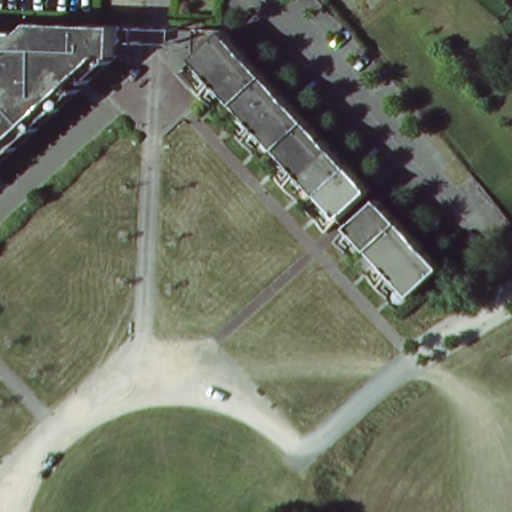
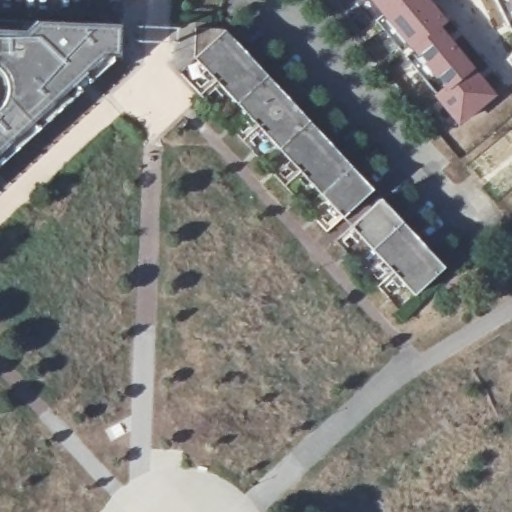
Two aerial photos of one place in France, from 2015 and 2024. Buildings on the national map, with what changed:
new [(449,20),(443,26),(499,94),(459,127),(432,93),(439,86),(425,71),(369,0),(432,0),(449,20)]
new [(504,0),(512,0),(512,14),(504,0)]
unchanged [(3,95),(3,85),(0,76),(0,31),(22,31),(32,21),(58,49),(84,24),(116,25),(114,54),(101,53),(0,147),(0,103),(3,95)]
unchanged [(228,36),(242,51),(216,75),(194,51),(195,41),(195,22),(208,23),(224,23),(232,32),(228,36)]
unchanged [(237,98),(216,75),(242,51),(256,66),(260,62),(267,70),(237,98)]
unchanged [(275,78),(270,82),(284,97),(258,121),(237,98),(267,70),(275,78)]
unchanged [(298,112),(302,108),(309,116),(280,144),(258,121),(284,97),(298,112)]
unchanged [(316,123),(312,127),(326,142),(301,166),(280,144),(309,116),(316,123)]
unchanged [(340,158),(344,153),(351,161),(322,189),(301,166),(326,142),(340,158)]
unchanged [(358,169),(354,173),(368,188),(343,212),(322,189),(351,161),(358,169)]
unchanged [(372,249),(351,226),(377,203),(390,218),(395,214),(402,222),(372,249)]
unchanged [(409,229),(405,233),(419,248),(393,272),(372,249),(402,222),(409,229)]
unchanged [(433,263),(437,259),(444,267),(414,295),(393,272),(419,248),(433,263)]

